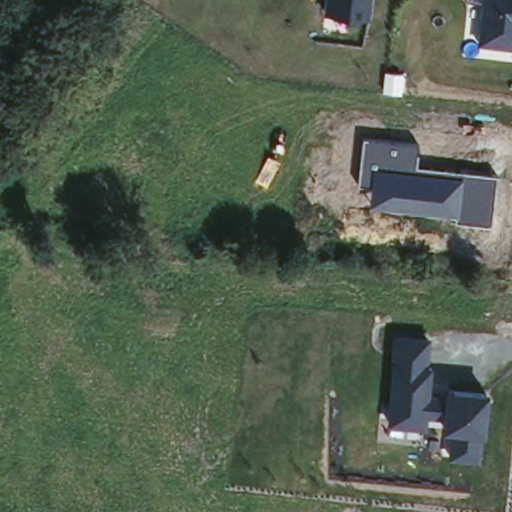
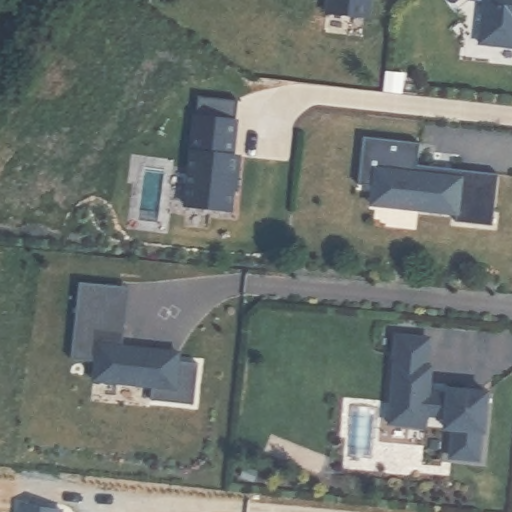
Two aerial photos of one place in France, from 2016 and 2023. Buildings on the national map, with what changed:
unchanged [(371,20),(323,15),(324,0),(373,0),(371,20)]
unchanged [(475,42),(480,0),(512,0),(512,47),(475,42)]
new [(196,116),(198,96),(238,101),(236,120),(232,155),(236,156),(230,211),(185,206),(196,116)]
unchanged [(419,140),(416,165),(497,172),(491,225),(455,221),(455,215),(369,206),(371,186),(357,185),(362,135),(419,140)]
new [(193,405),(150,400),(151,386),(93,380),(95,362),(71,360),(79,282),(118,287),(128,288),(125,320),(121,347),(149,350),(156,359),(198,363),(193,405)]
unchanged [(430,333),(427,366),(434,366),(431,391),(445,392),(445,385),(490,388),(486,433),(482,432),(481,463),(448,460),(449,430),(442,428),(443,416),(428,415),(426,428),(386,425),(393,332),(430,333)]
new [(178,361),(156,359),(149,350),(179,353),(178,361)]
new [(19,512),(20,507),(66,512),(19,512)]

